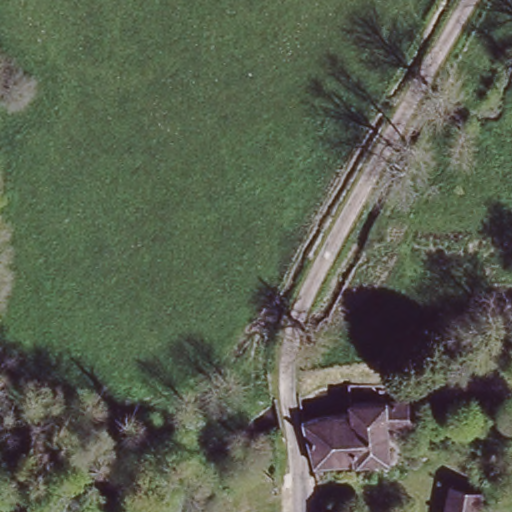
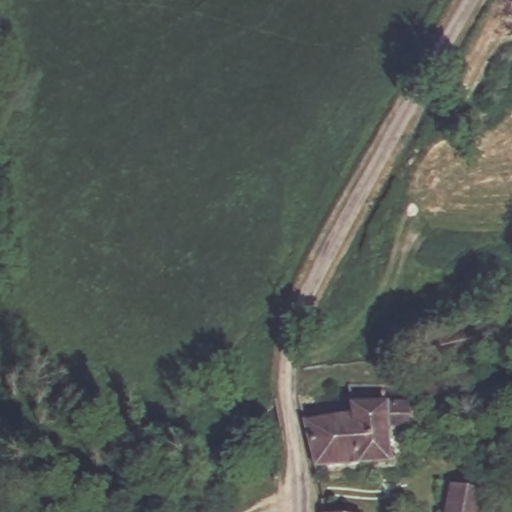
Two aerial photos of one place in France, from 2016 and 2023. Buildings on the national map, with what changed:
unchanged [(303,421),(349,416),(350,401),(384,401),(410,402),(408,427),(388,427),(390,465),(356,465),(315,467),(303,421)]
unchanged [(479,512),(448,512),(453,483),(482,492),(479,512)]

